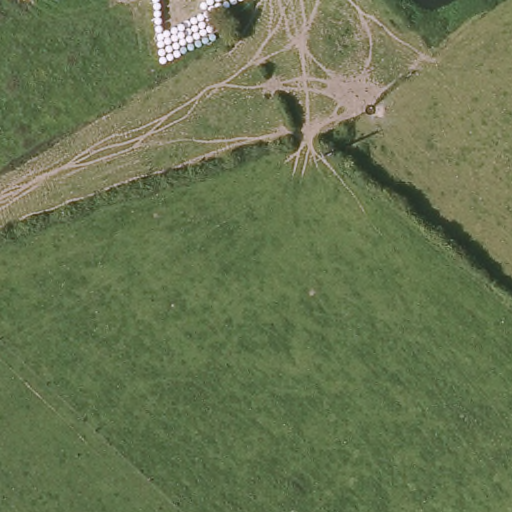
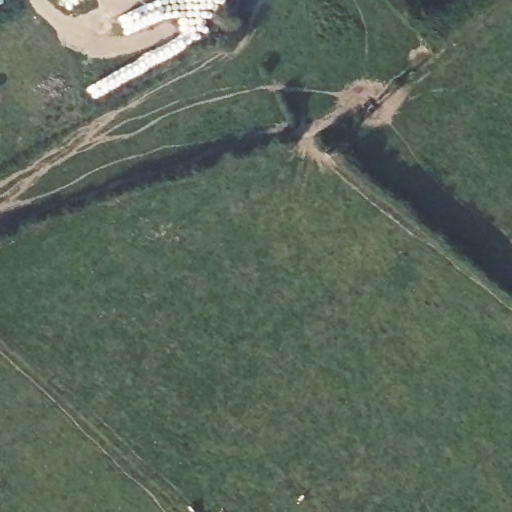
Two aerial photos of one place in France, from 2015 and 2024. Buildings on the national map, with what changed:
[]

